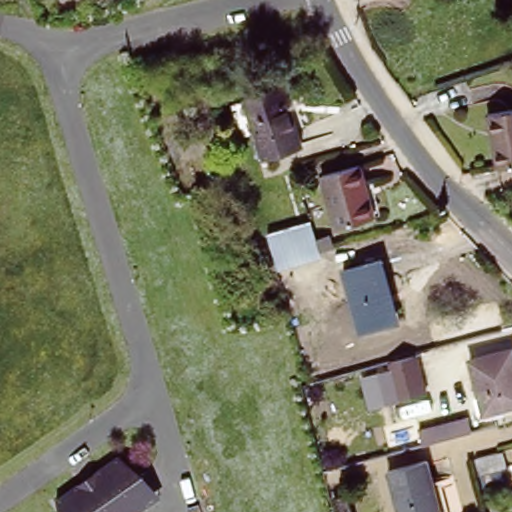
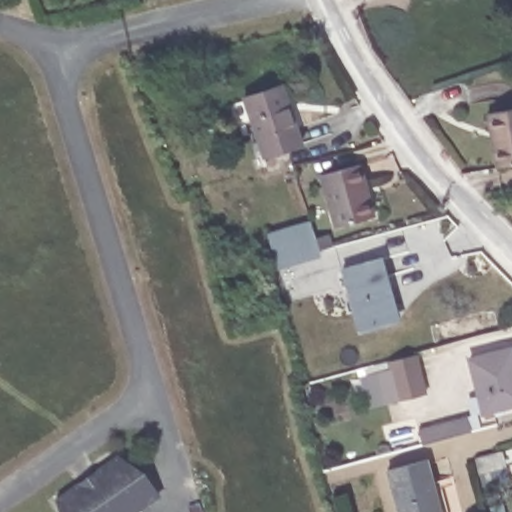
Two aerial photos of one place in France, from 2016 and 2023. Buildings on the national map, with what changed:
unchanged [(267,156),(247,99),(284,87),(305,145),(267,156)]
unchanged [(495,167),(487,113),(512,109),(512,164),(495,167)]
unchanged [(337,225),(325,174),(362,164),(375,216),(337,225)]
unchanged [(277,265),(269,233),(312,221),(321,252),(284,263),(297,286),(285,290),(277,265)]
unchanged [(385,298),(392,322),(362,330),(345,270),(383,260),(394,295),(385,298)]
unchanged [(485,412),(472,359),(512,349),(512,405),(485,412)]
unchanged [(408,354),(419,393),(395,399),(384,361),(408,354)]
unchanged [(422,430),(470,417),(474,432),(426,445),(422,430)]
unchanged [(482,474),(477,458),(504,451),(508,468),(482,474)]
unchanged [(97,473),(120,457),(141,470),(160,498),(153,503),(140,512),(61,512),(58,502),(82,485),(97,473)]
unchanged [(389,472),(427,461),(434,484),(432,485),(439,512),(400,512),(389,472)]

